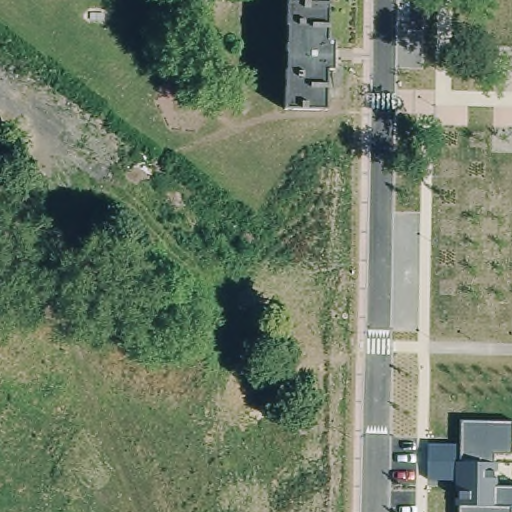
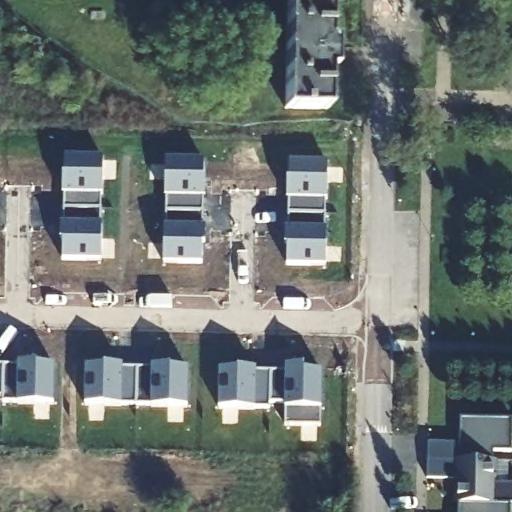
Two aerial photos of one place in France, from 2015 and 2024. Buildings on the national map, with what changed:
unchanged [(288,0),(329,0),(329,5),(287,5),(288,0)]
unchanged [(329,5),(329,40),(335,40),(335,57),(335,70),(327,70),(327,105),(327,110),(286,108),(287,5),(329,5)]
new [(100,263),(61,262),(64,158),(103,161),(100,263)]
new [(205,177),(208,178),(206,199),(201,200),(201,228),(207,228),(207,246),(202,246),(202,265),(163,265),(165,161),(202,163),(205,177)]
new [(326,268),(285,266),(289,164),(327,166),(326,268)]
new [(2,404),(2,397),(0,397),(0,366),(54,366),(53,404),(2,404)]
new [(187,406),(85,405),(86,367),(188,370),(187,406)]
new [(305,371),(322,372),(321,408),(321,428),(284,428),(283,403),(270,404),(269,409),(256,408),(219,408),(219,370),(237,370),(238,368),(255,371),(255,375),(284,376),(285,367),(304,367),(305,371)]
unchanged [(459,505),(457,506),(456,481),(428,481),(429,443),(462,443),(462,421),(512,422),(512,437),(512,452),(495,452),(494,463),(498,463),(497,486),(512,487),(512,506),(511,506),(511,512),(459,512),(459,505)]

